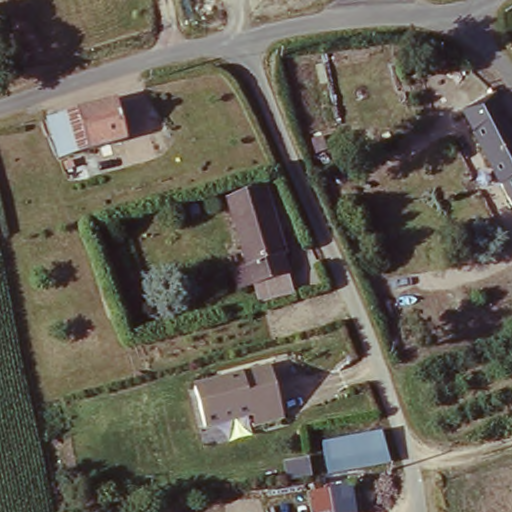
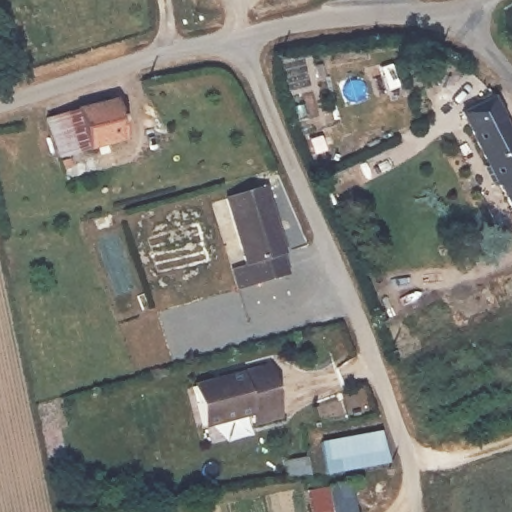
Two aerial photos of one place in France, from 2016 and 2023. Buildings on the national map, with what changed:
unchanged [(16,0),(24,24),(0,32),(0,3),(10,0),(16,0)]
unchanged [(498,98),(512,124),(512,195),(464,113),(498,98)]
unchanged [(115,103),(124,141),(59,158),(46,120),(115,103)]
unchanged [(246,287),(236,290),(231,270),(238,268),(219,203),(263,190),(293,291),(251,303),(246,287)]
unchanged [(288,414),(256,423),(253,417),(207,426),(195,381),(273,363),(288,414)]
unchanged [(379,437),(384,467),(326,478),(321,447),(379,437)]
unchanged [(360,512),(304,512),(300,490),(355,480),(360,512)]

